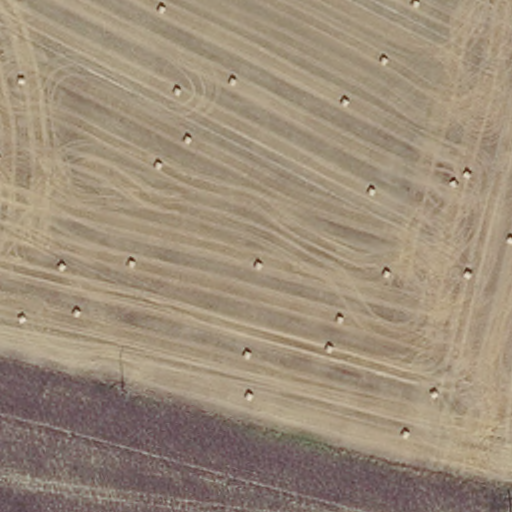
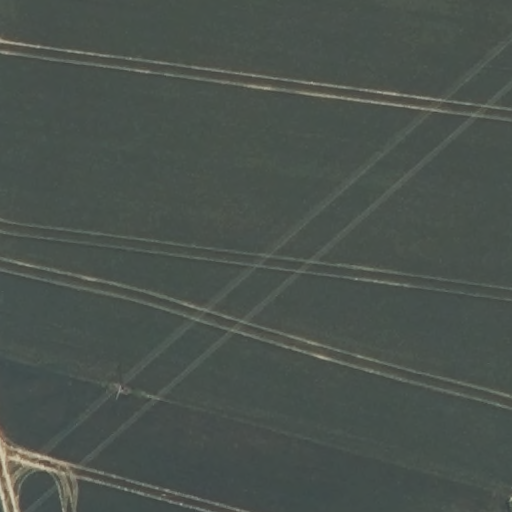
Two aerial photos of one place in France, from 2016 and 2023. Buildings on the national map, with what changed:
unchanged [(321,432),(307,428),(308,419),(309,415),(323,418),(323,423),(321,432)]

